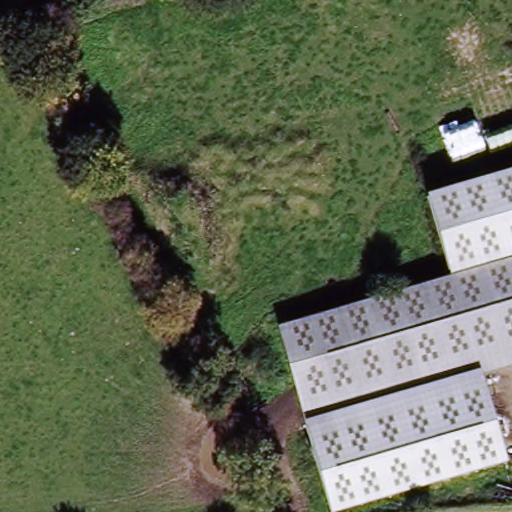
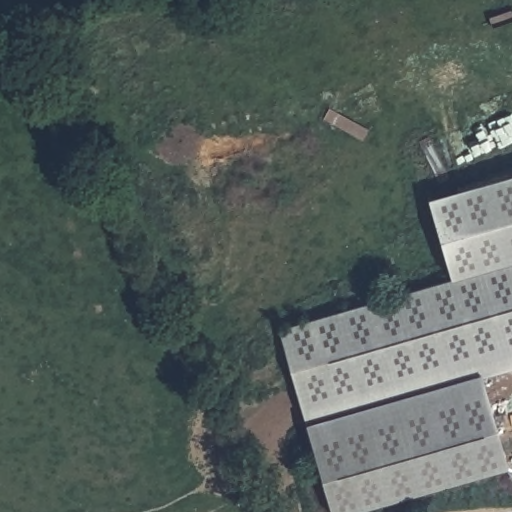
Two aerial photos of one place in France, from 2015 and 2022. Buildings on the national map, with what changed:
unchanged [(280,323),(441,287),(431,199),(512,178),(512,366),(305,422),(280,323)]
unchanged [(482,374),(508,463),(343,512),(331,512),(305,422),(482,374)]

